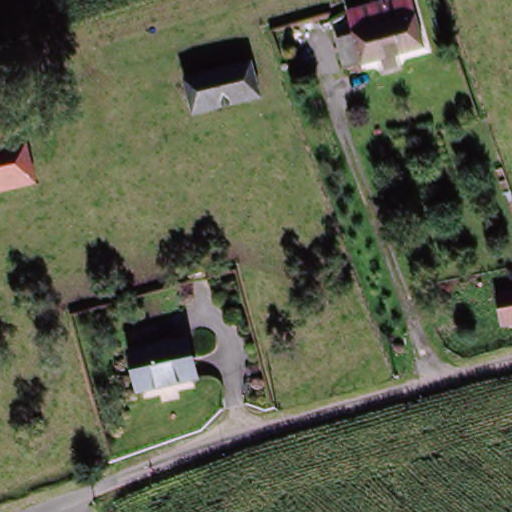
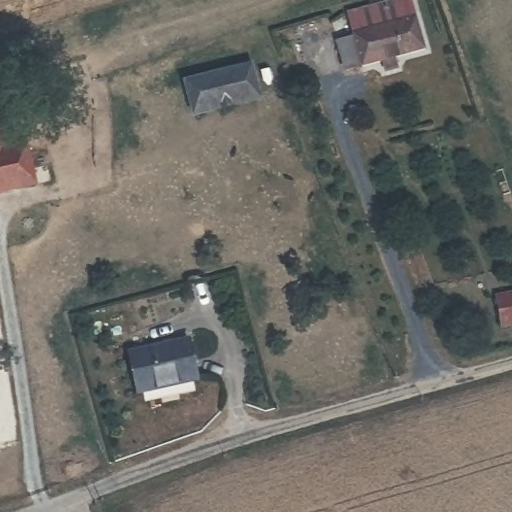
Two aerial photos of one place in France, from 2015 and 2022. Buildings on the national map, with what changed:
unchanged [(347,16),(401,0),(410,0),(414,15),(353,33),(347,16)]
unchanged [(386,71),(383,60),(363,65),(345,70),(338,43),(354,38),(353,33),(414,15),(425,47),(395,56),(399,67),(386,71)]
unchanged [(254,63),(265,98),(195,118),(185,83),(254,63)]
unchanged [(0,124),(6,150),(29,144),(40,184),(0,195),(0,124)]
unchanged [(503,325),(497,295),(512,293),(512,324),(503,325)]
unchanged [(124,356),(186,344),(194,384),(132,397),(124,356)]

